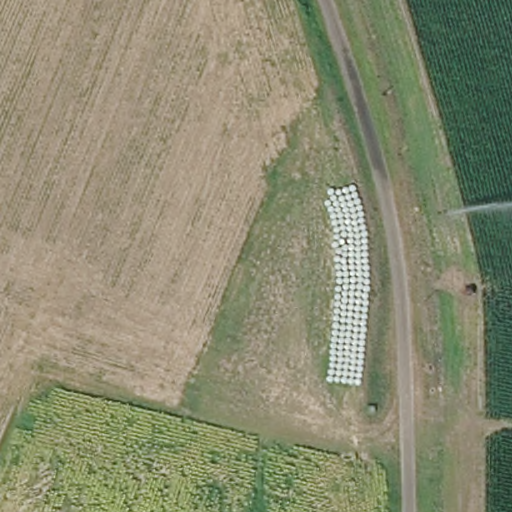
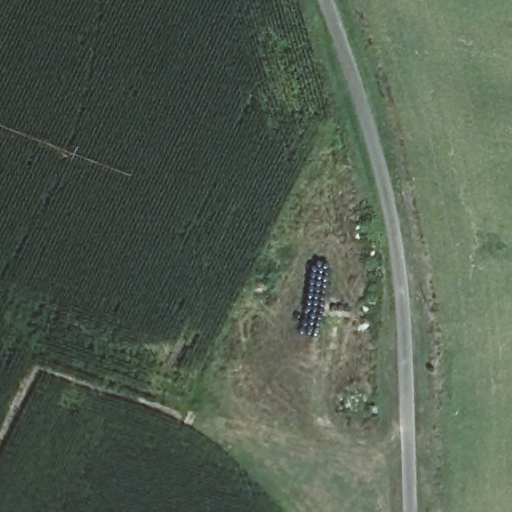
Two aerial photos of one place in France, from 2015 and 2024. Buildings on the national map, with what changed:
[]

